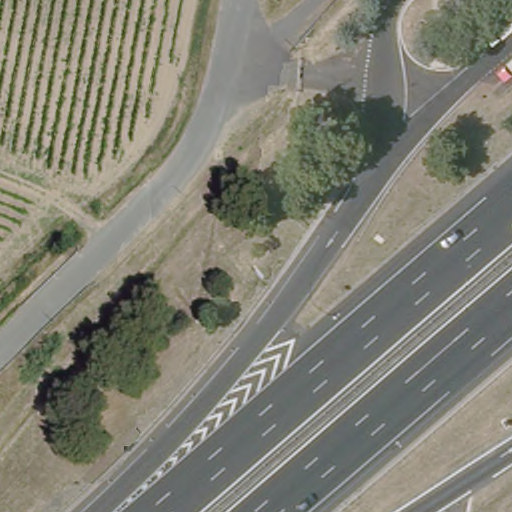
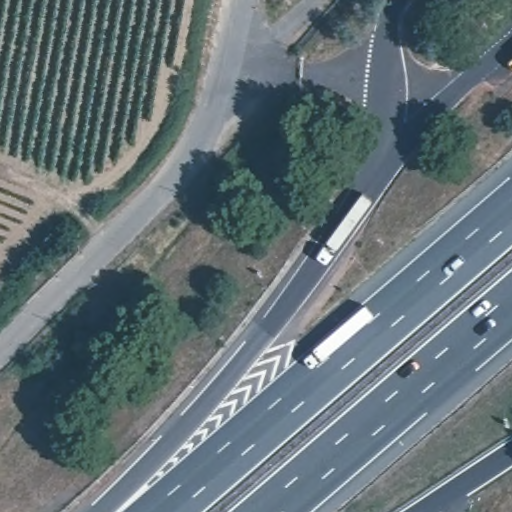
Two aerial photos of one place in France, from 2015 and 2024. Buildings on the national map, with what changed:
[]

